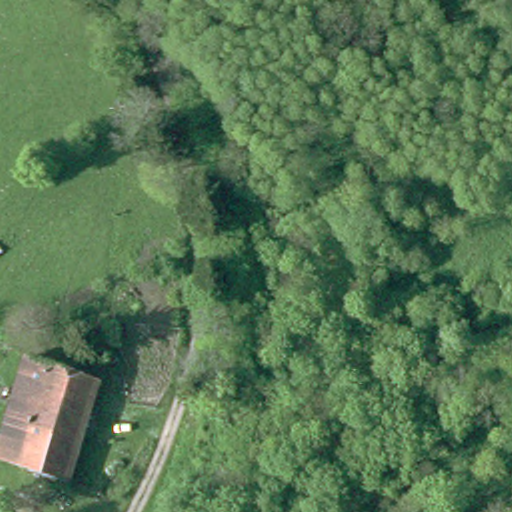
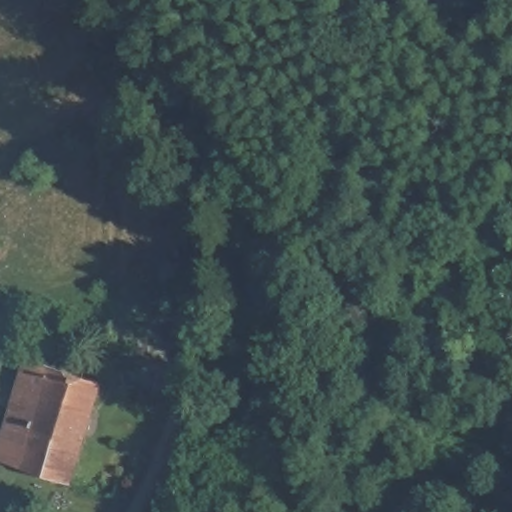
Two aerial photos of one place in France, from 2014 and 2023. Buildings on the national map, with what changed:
unchanged [(65,480),(0,459),(0,436),(24,359),(97,382),(65,480)]
unchanged [(420,503),(410,486),(439,471),(449,487),(420,503)]

